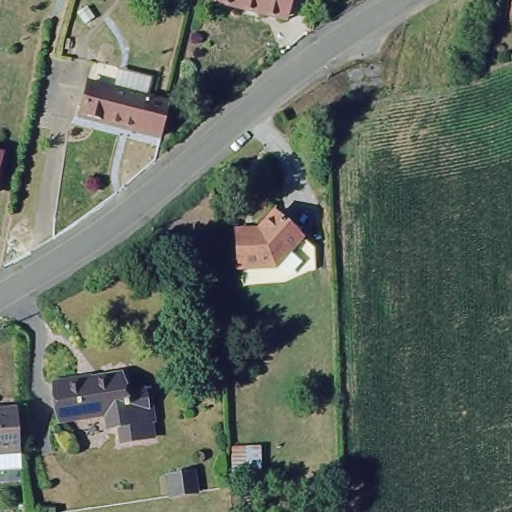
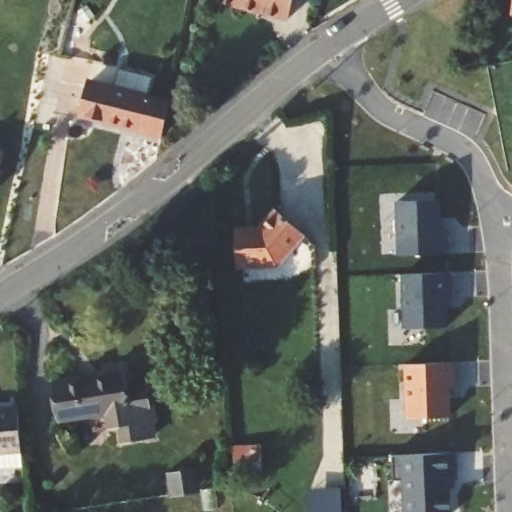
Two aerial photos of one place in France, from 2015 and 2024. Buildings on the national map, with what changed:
unchanged [(260,7),(259,12),(217,4),(218,0),(292,0),(289,14),(260,7)]
unchanged [(79,84),(158,104),(150,132),(70,113),(79,84)]
unchanged [(2,154),(0,161),(0,153),(2,154)]
new [(441,199),(444,228),(448,227),(448,253),(398,255),(397,200),(441,199)]
unchanged [(252,240),(247,235),(267,215),(291,238),(263,267),(231,270),(230,241),(252,240)]
new [(450,272),(451,296),(445,297),(446,326),(405,327),(404,273),(450,272)]
new [(453,362),(453,387),(448,387),(448,416),(407,417),(406,363),(453,362)]
unchanged [(80,376),(80,380),(99,377),(124,374),(125,377),(127,391),(146,388),(153,437),(124,441),(122,428),(112,430),(109,410),(60,417),(55,380),(80,376)]
unchanged [(21,409),(24,453),(0,456),(0,412),(21,409)]
new [(454,452),(455,479),(447,479),(447,512),(402,512),(402,478),(392,478),(392,453),(454,452)]
unchanged [(190,470),(194,489),(169,494),(164,475),(190,470)]
new [(344,483),(345,512),(319,512),(318,483),(344,483)]
unchanged [(46,512),(24,512),(24,511),(46,512)]

